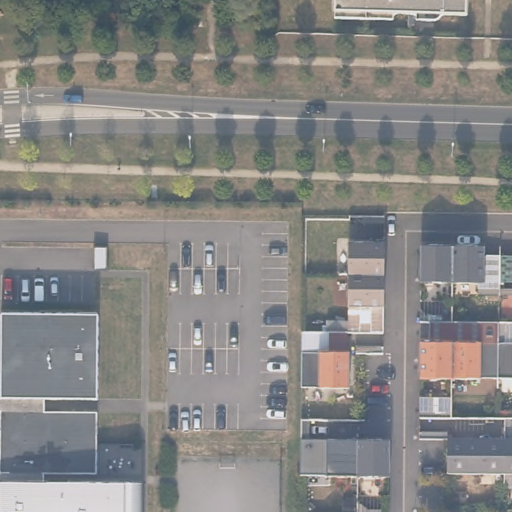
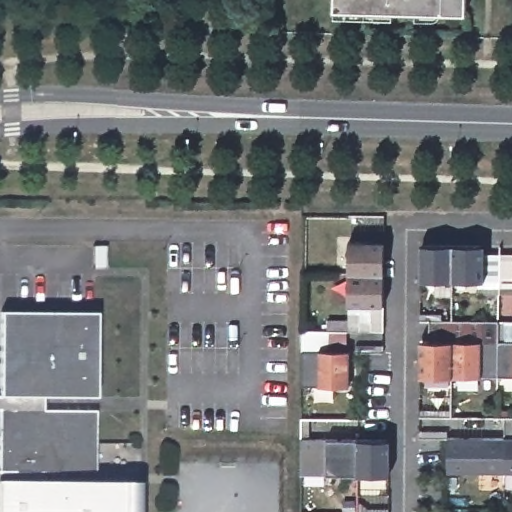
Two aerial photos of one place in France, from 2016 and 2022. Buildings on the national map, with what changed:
unchanged [(341,7),(341,0),(473,0),(472,3),(400,1),(400,8),(341,7)]
unchanged [(93,241),(107,241),(107,265),(93,264),(93,241)]
unchanged [(348,274),(349,242),(375,242),(375,246),(384,246),(383,302),(375,302),(375,305),(348,305),(348,274)]
unchanged [(479,246),(512,246),(512,286),(421,286),(420,245),(479,246)]
unchanged [(92,403),(39,403),(39,416),(92,416),(91,478),(38,478),(38,490),(123,491),(123,512),(0,512),(0,317),(92,318),(92,403)]
unchanged [(420,350),(423,350),(423,342),(425,342),(498,342),(512,342),(512,378),(497,378),(451,377),(420,377),(420,350)]
unchanged [(301,352),(349,352),(348,387),(301,387),(301,352)]
unchanged [(447,438),(504,438),(512,438),(512,474),(504,474),(447,473),(447,438)]
unchanged [(364,440),(385,440),(385,441),(385,449),(389,449),(388,476),(357,475),(300,475),(300,464),(300,440),(364,440)]

